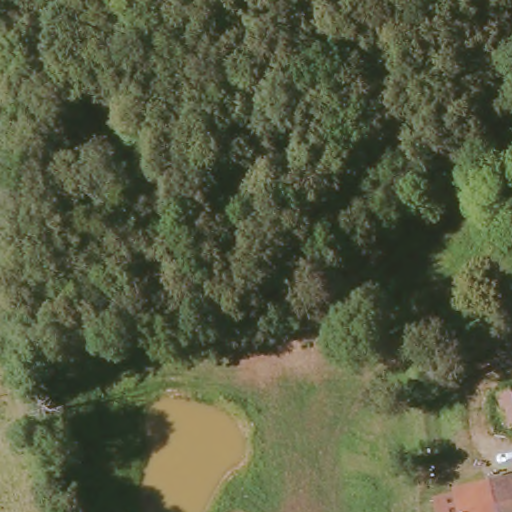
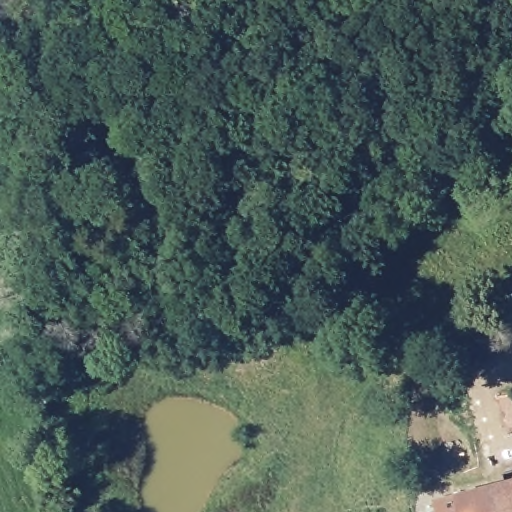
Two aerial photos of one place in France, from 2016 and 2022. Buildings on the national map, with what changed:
unchanged [(512,393),(512,431),(511,431),(505,409),(501,396),(512,393)]
unchanged [(512,512),(499,512),(493,487),(512,482),(512,512)]
unchanged [(499,512),(463,512),(458,494),(493,487),(499,512)]

